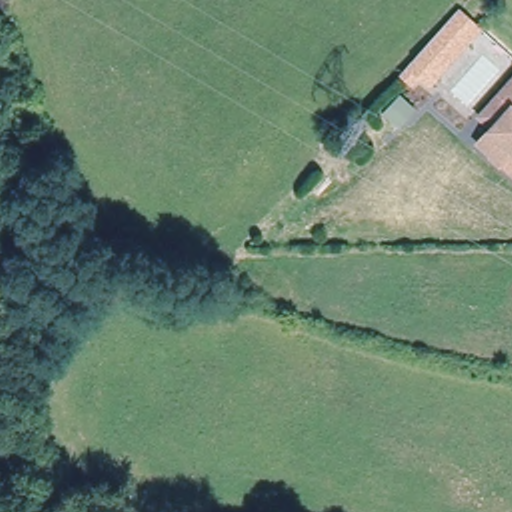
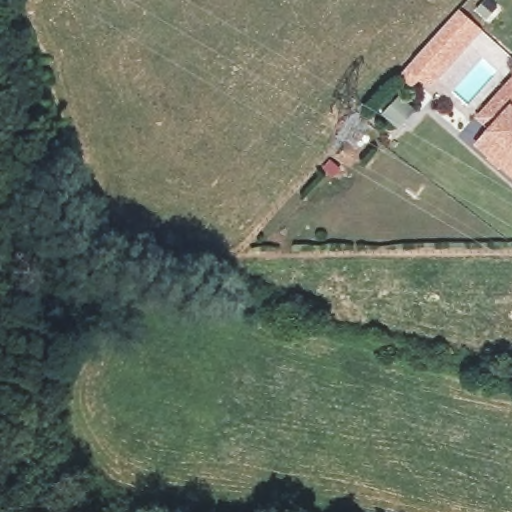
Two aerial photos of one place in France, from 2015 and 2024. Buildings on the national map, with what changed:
unchanged [(483,30),(432,88),(420,79),(412,88),(398,76),(458,9),(483,30)]
unchanged [(499,161),(497,163),(487,154),(490,152),(480,144),(494,129),(482,117),(512,84),(512,173),(507,169),(499,161)]

